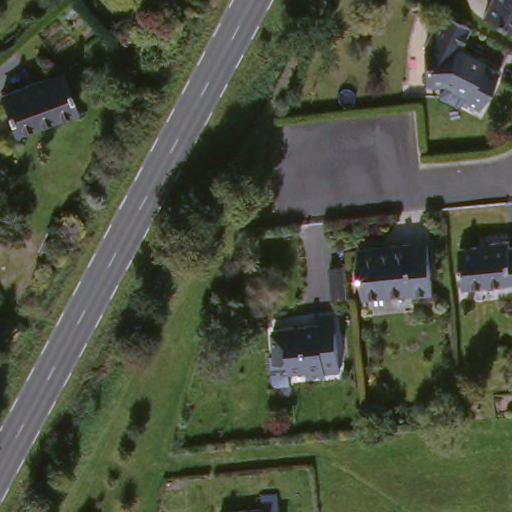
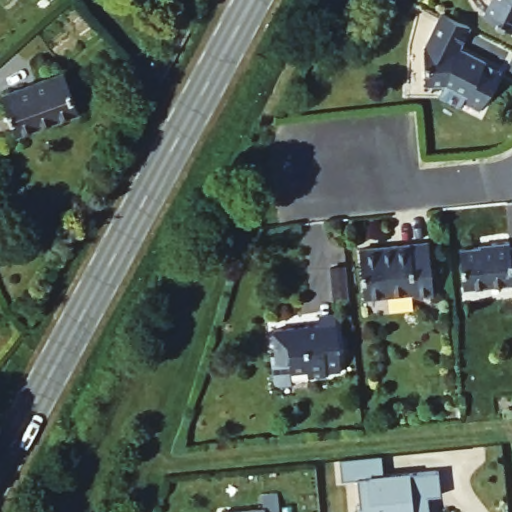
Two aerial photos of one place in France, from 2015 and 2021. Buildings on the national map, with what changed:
unchanged [(482,11),(488,0),(512,0),(512,25),(482,11)]
unchanged [(456,47),(486,63),(483,68),(496,74),(477,111),(460,103),(466,92),(447,81),(423,82),(422,44),(438,6),(468,20),(456,47)]
unchanged [(59,66),(74,109),(21,129),(4,88),(59,66)]
unchanged [(511,284),(511,280),(462,284),(460,247),(490,245),(490,237),(510,237),(511,244),(512,244),(512,284),(511,284)]
unchanged [(433,289),(363,294),(361,245),(429,240),(433,289)]
unchanged [(347,298),(332,298),(329,269),(345,269),(347,298)]
unchanged [(325,366),(325,377),(310,377),(310,369),(290,369),(289,351),(276,351),(273,328),(322,324),(322,313),(335,313),(335,330),(338,365),(325,366)]
new [(381,457),(382,477),(408,475),(408,476),(438,473),(440,497),(426,498),(428,512),(354,512),(354,508),(359,508),(357,481),(341,482),(339,462),(352,460),(381,457)]
unchanged [(265,511),(278,511),(279,512),(220,512),(220,511),(265,507),(265,511)]

